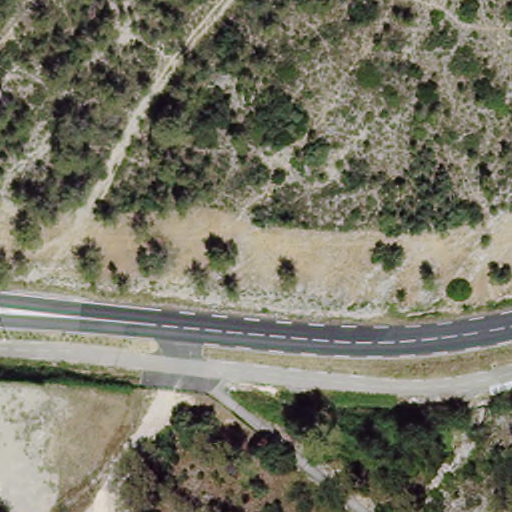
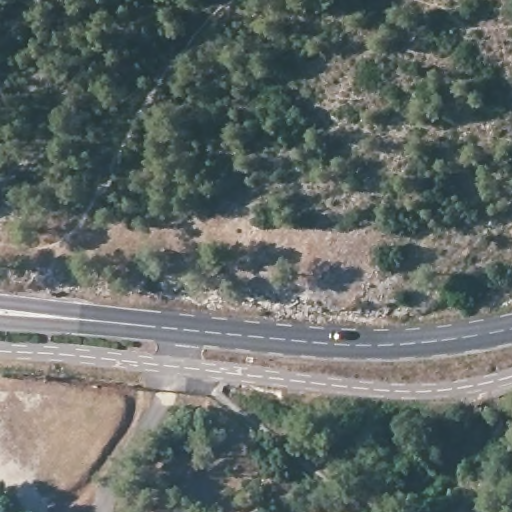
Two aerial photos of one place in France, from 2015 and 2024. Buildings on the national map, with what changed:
[]

